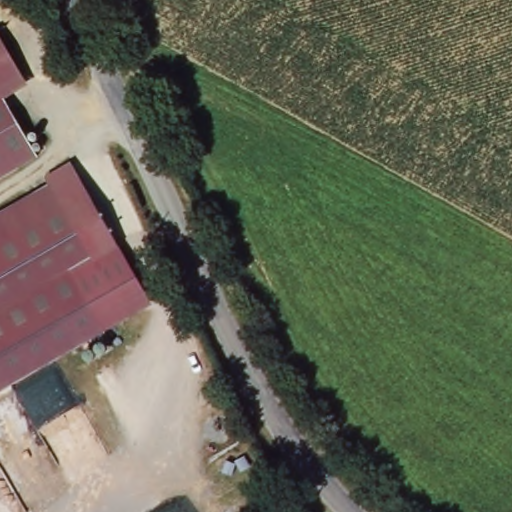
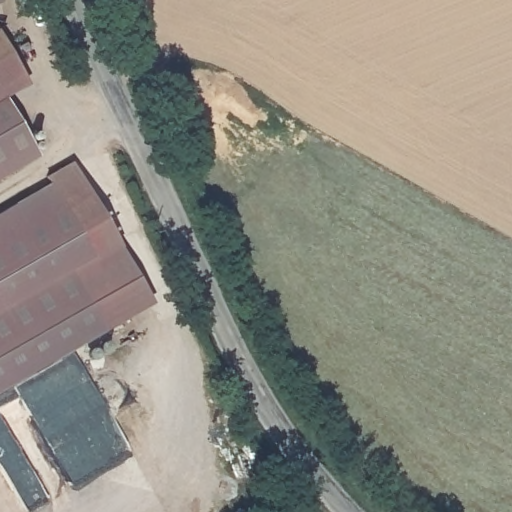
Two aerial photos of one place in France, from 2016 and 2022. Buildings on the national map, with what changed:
unchanged [(3,2),(0,4),(0,0),(2,0),(3,2)]
unchanged [(0,38),(0,34),(2,37),(0,38)]
unchanged [(2,37),(26,82),(8,93),(0,97),(0,38),(2,37)]
unchanged [(8,93),(43,156),(0,180),(0,97),(8,93)]
unchanged [(50,188),(44,178),(72,161),(155,301),(0,392),(0,216),(50,188)]

